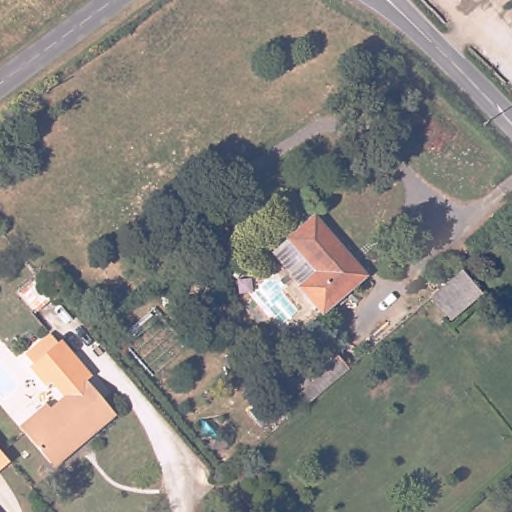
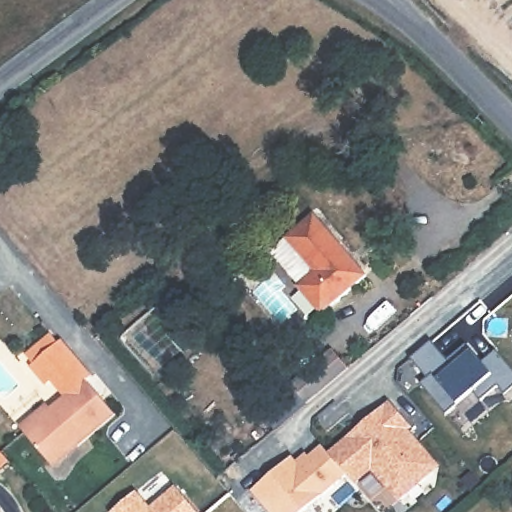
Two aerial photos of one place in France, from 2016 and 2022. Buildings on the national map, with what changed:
unchanged [(304,283),(320,268),(292,235),(318,212),(359,259),(370,273),(327,310),(304,283)]
demolished [(464,275),(475,287),(450,309),(439,296),(464,275)]
unchanged [(54,465),(28,434),(24,430),(50,407),(54,412),(66,401),(53,384),(48,388),(32,369),(34,367),(26,359),(55,335),(63,344),(65,342),(95,378),(91,382),(120,416),(85,446),(58,469),(54,465)]
new [(434,340),(450,360),(469,344),(484,363),(499,350),(512,366),(512,392),(507,396),(500,387),(484,401),(476,392),(449,415),(423,384),(429,378),(413,358),(434,340)]
unchanged [(292,381),(334,346),(351,366),(310,402),(292,381)]
new [(428,477),(400,501),(374,469),(356,484),(349,475),(331,454),(362,427),(368,421),(391,402),(413,427),(409,430),(435,461),(440,467),(428,477)]
new [(301,465),(324,446),(331,454),(349,475),(305,512),(271,512),(254,491),(294,457),(301,465)]
unchanged [(13,462),(0,473),(0,448),(8,457),(13,462)]

